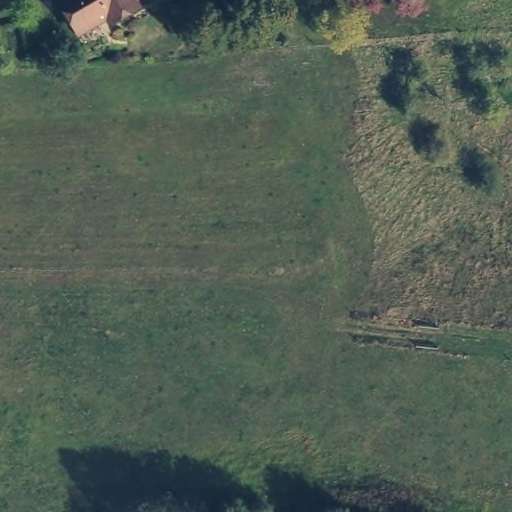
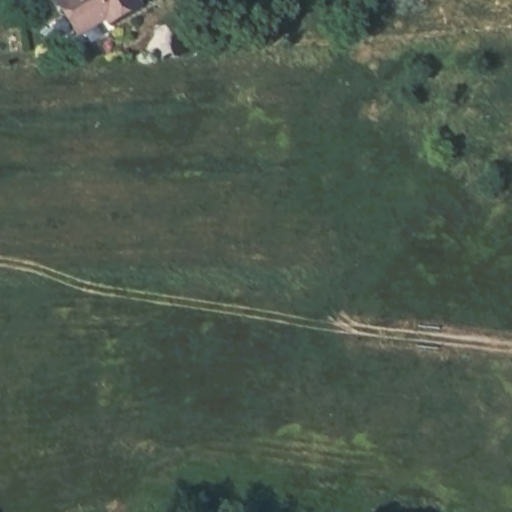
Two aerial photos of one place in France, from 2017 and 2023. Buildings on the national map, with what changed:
unchanged [(112,21),(106,12),(76,28),(62,0),(141,0),(142,3),(112,21)]

